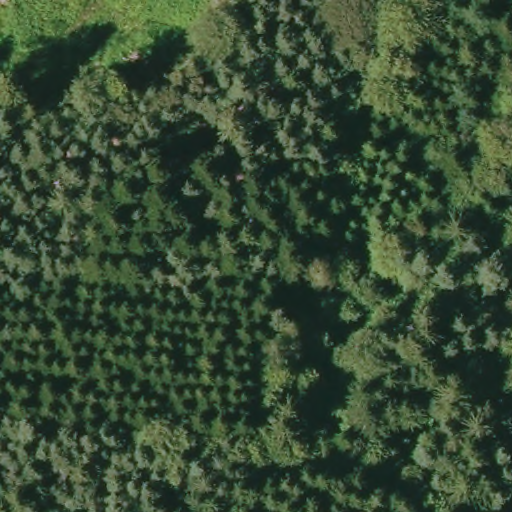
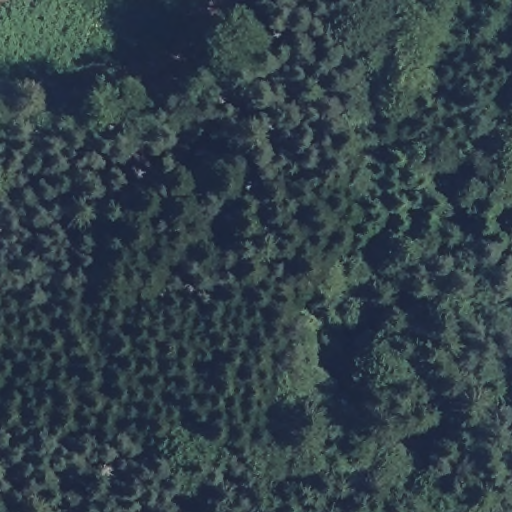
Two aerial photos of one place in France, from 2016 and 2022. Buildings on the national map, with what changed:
[]

